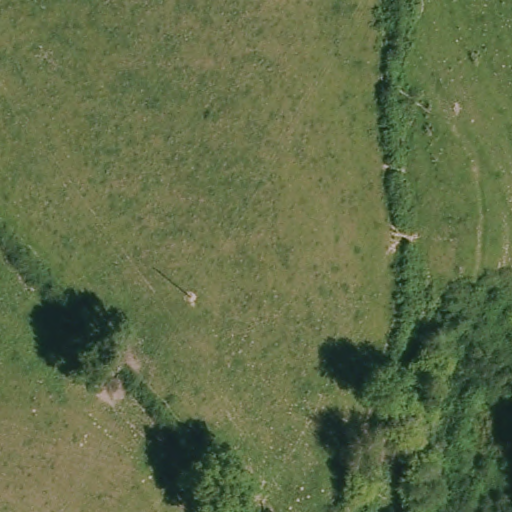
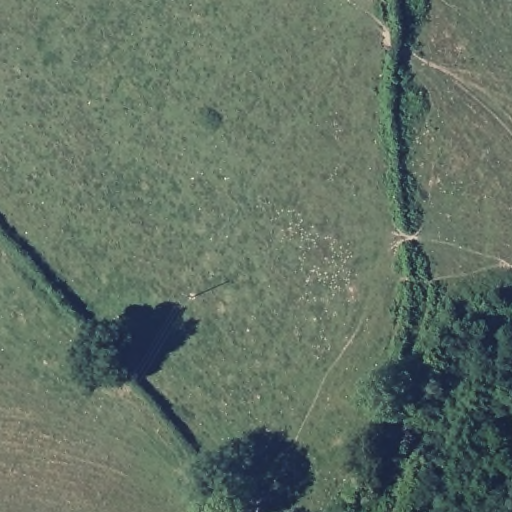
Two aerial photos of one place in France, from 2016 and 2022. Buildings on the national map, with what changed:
unchanged [(213,471),(202,482),(186,466),(198,452),(213,471)]

